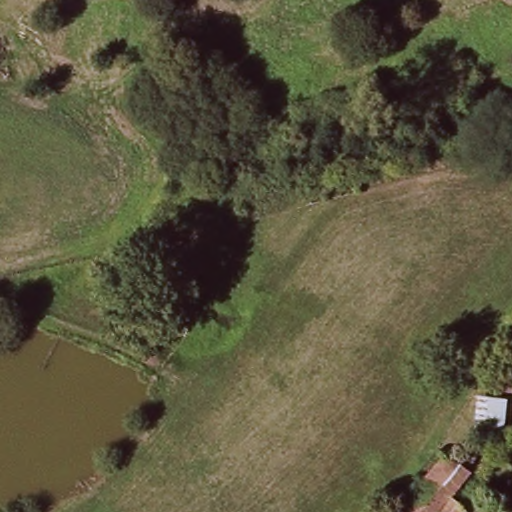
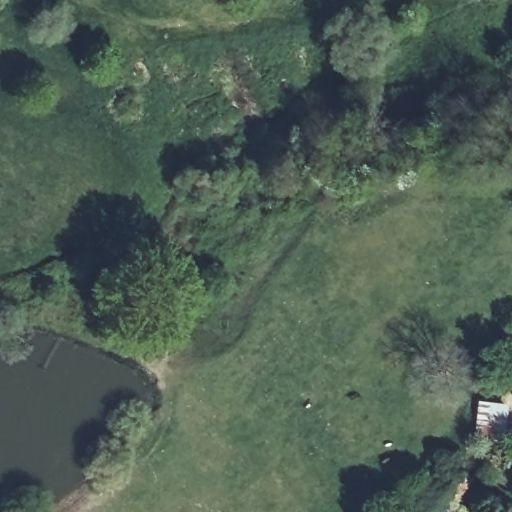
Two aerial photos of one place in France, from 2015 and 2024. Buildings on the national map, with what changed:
unchanged [(404,499),(439,461),(470,488),(448,512),(417,512),(404,499)]

